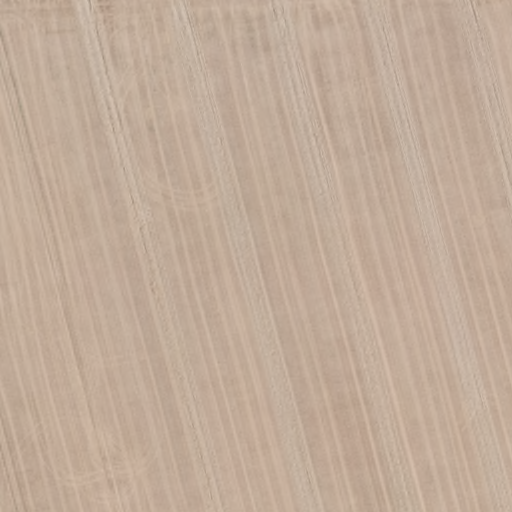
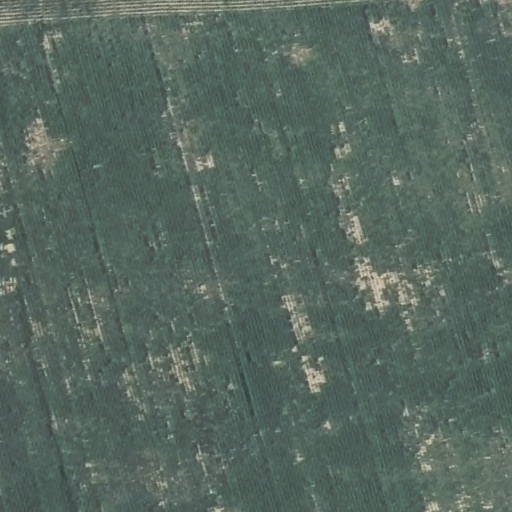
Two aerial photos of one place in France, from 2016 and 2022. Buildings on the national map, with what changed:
[]

